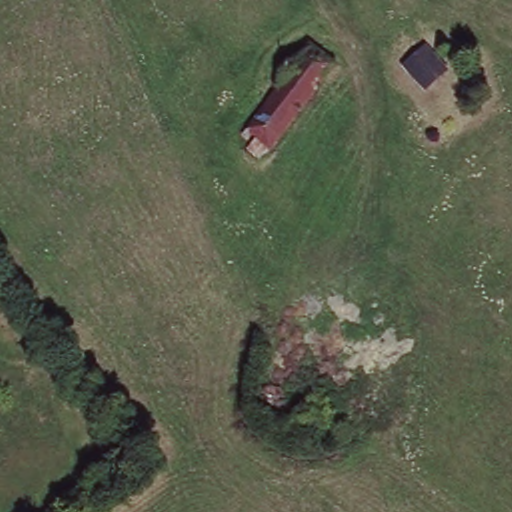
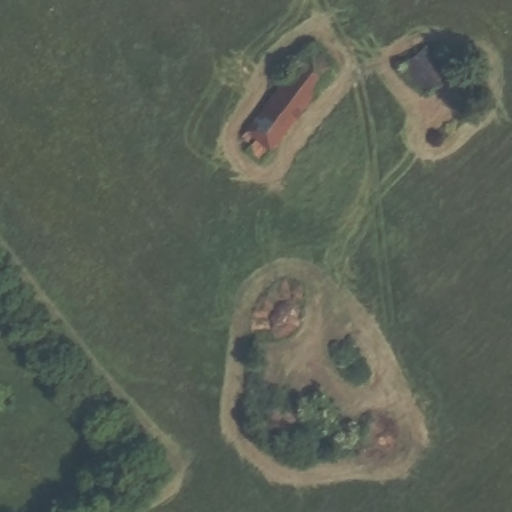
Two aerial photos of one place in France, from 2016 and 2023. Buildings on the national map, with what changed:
unchanged [(307,46),(331,65),(315,85),(265,147),(239,127),(292,64),(307,46)]
unchanged [(427,96),(401,68),(425,46),(451,75),(427,96)]

